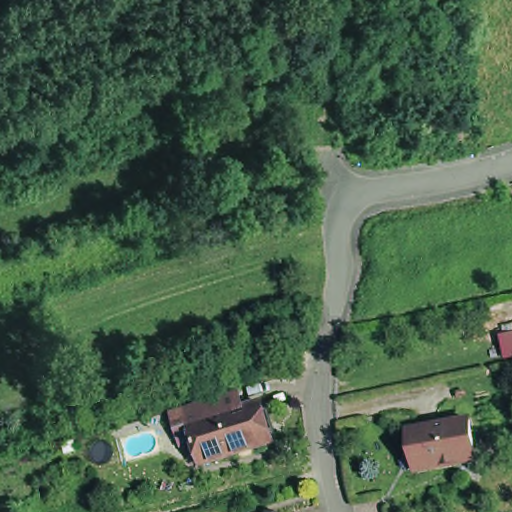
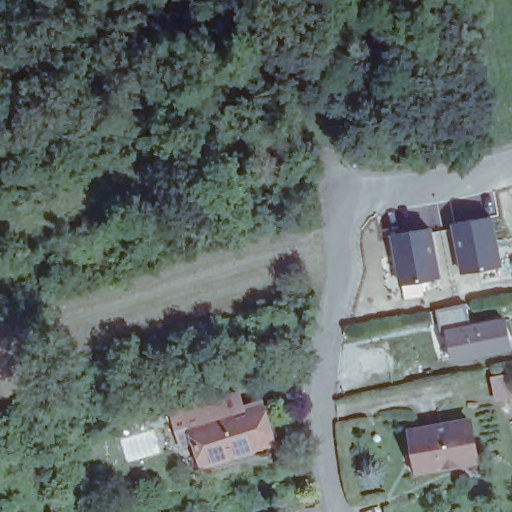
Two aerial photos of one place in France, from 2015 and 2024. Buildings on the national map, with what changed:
new [(491,214),(502,264),(459,273),(449,222),(491,214)]
new [(431,225),(441,278),(422,281),(424,294),(403,298),(388,232),(431,225)]
new [(508,352),(449,364),(441,329),(504,314),(508,352)]
unchanged [(204,461),(199,446),(186,450),(184,443),(181,433),(193,429),(189,413),(221,404),(243,397),(248,412),(264,407),(268,418),(275,439),(278,448),(207,469),(204,461)]
unchanged [(418,471),(409,431),(414,429),(469,417),(478,456),(462,459),(462,461),(423,470),(418,471)]

